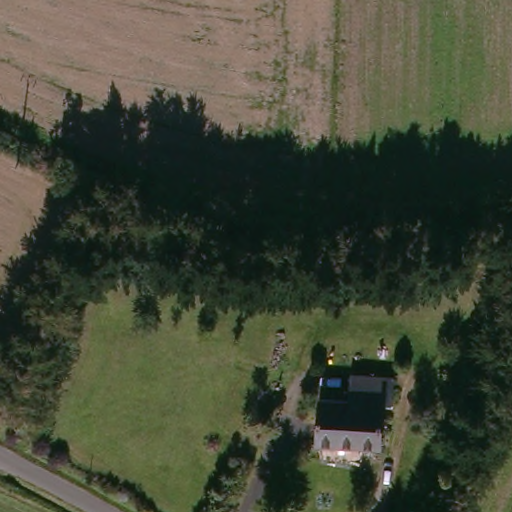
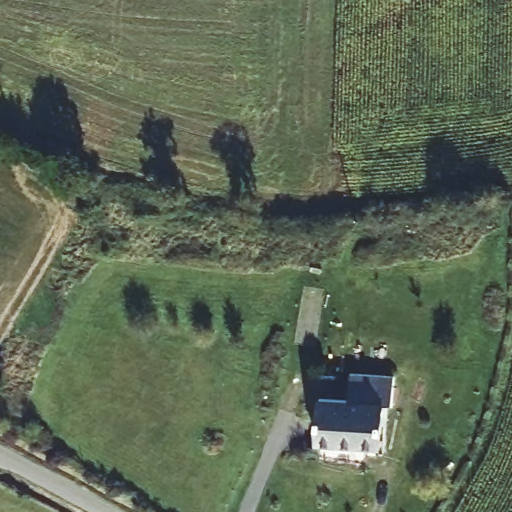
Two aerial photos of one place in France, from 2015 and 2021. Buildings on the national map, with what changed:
unchanged [(384,403),(381,448),(317,445),(319,399),(346,400),(347,391),(348,371),(394,373),(392,403),(384,403)]

